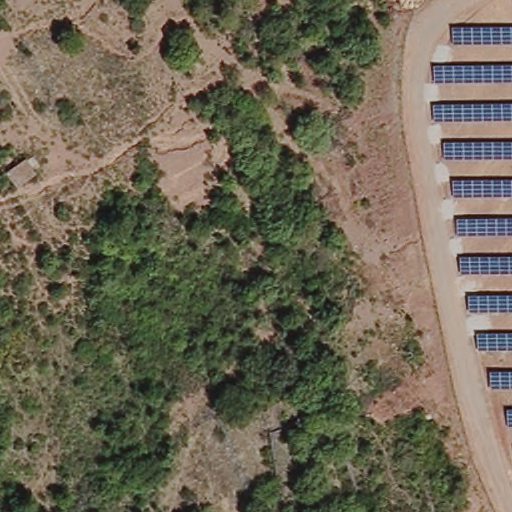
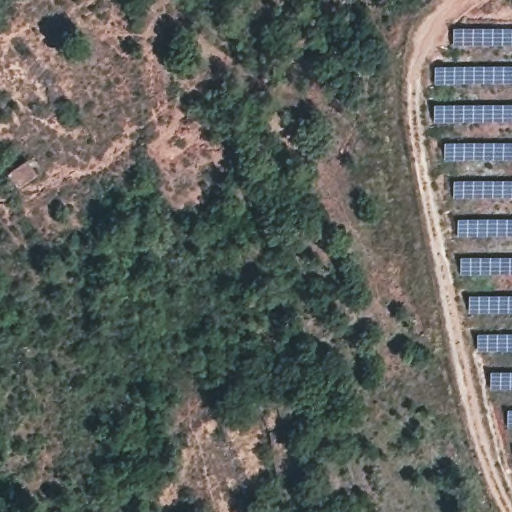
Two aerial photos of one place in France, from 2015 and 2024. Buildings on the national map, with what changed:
unchanged [(30,158),(39,175),(17,188),(6,174),(30,158)]

